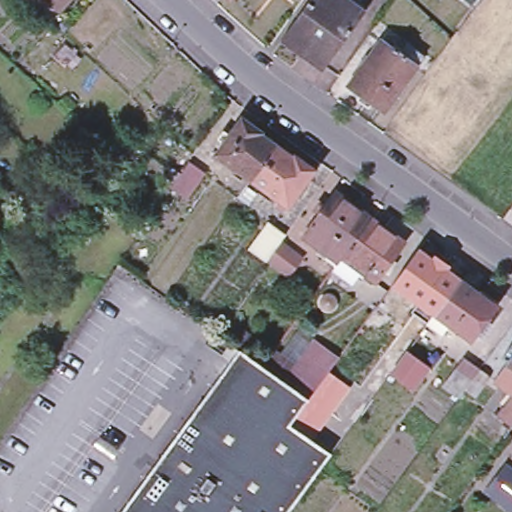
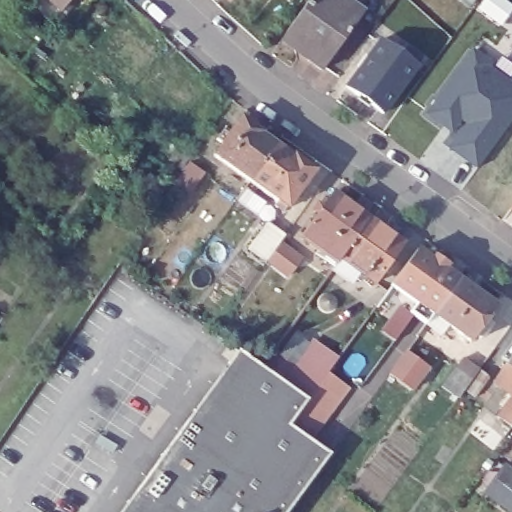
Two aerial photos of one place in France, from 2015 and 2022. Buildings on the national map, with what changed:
unchanged [(46,0),(72,0),(60,13),(46,0)]
unchanged [(282,43),(311,0),(343,0),(363,13),(324,71),(282,43)]
new [(498,0),(507,6),(500,14),(507,19),(501,27),(481,12),(490,0),(498,0)]
unchanged [(417,68),(387,114),(348,88),(379,42),(417,68)]
new [(494,62),(491,65),(512,81),(512,121),(479,167),(445,144),(454,132),(426,112),(472,47),(494,62)]
unchanged [(251,185),(215,158),(241,120),(261,134),(259,137),(277,149),(251,185)]
unchanged [(274,209),(277,204),(251,185),(277,149),(292,161),(294,159),(315,173),(287,211),(285,210),(282,215),(274,209)]
unchanged [(188,199),(172,188),(187,165),(204,176),(188,199)]
unchanged [(332,264),(320,255),(323,251),(299,233),(329,190),(348,203),(350,200),(369,213),(402,238),(375,279),(356,267),(346,281),(329,268),(332,264)]
unchanged [(276,271),(257,257),(276,231),(295,244),(276,271)]
unchanged [(432,319),(393,290),(419,255),(433,266),(436,261),(448,270),(445,274),(459,284),(432,319)]
unchanged [(459,284),(477,298),(480,295),(498,308),(480,333),(486,337),(481,343),(475,339),(470,347),(432,319),(459,284)]
unchanged [(241,353),(264,370),(285,385),(315,345),(324,352),(340,363),(311,403),(292,428),(328,454),(332,456),(320,473),(291,512),(124,512),(241,353)]
unchanged [(494,380),(506,363),(512,354),(512,394),(494,380)]
unchanged [(411,395),(389,379),(407,355),(427,371),(411,395)]
unchanged [(472,401),(461,393),(447,383),(462,363),(476,372),(487,380),(472,401)]
unchanged [(496,415),(507,400),(509,401),(512,396),(512,427),(510,425),(496,415)]
unchanged [(507,461),(512,465),(512,511),(483,494),(507,461)]

